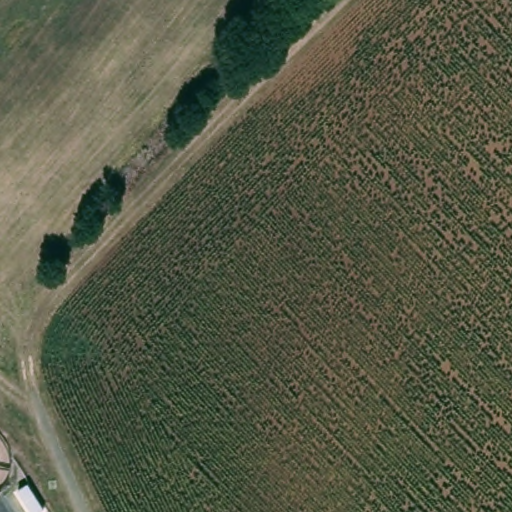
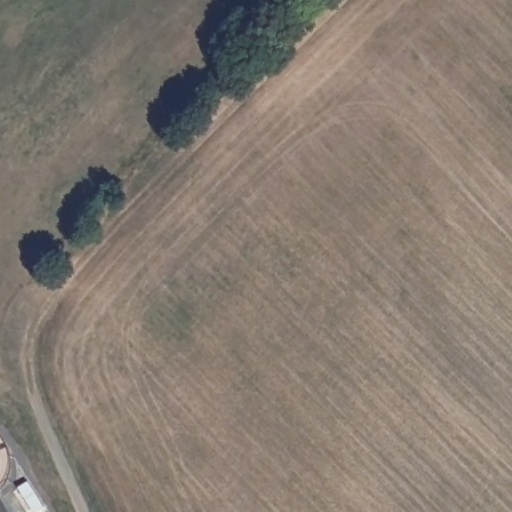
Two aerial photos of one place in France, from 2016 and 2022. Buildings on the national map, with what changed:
[]

